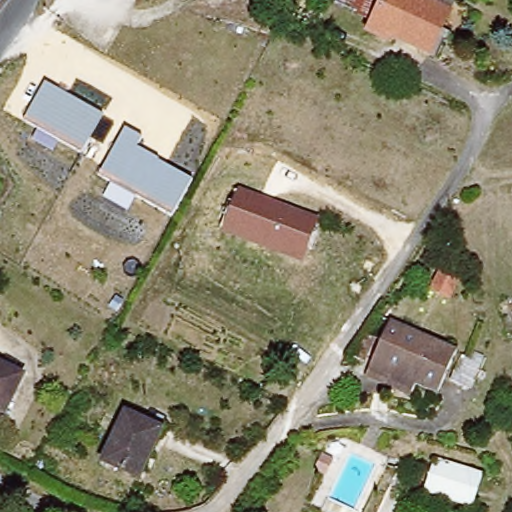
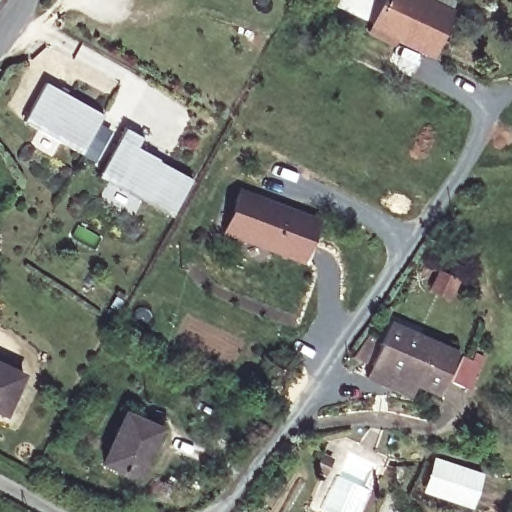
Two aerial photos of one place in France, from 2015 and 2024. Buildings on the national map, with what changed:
unchanged [(340,5),(342,0),(388,0),(377,23),(340,5)]
unchanged [(399,37),(395,43),(373,32),(377,23),(388,0),(462,0),(435,55),(399,37)]
unchanged [(45,84),(103,117),(81,155),(24,123),(45,84)]
unchanged [(125,131),(143,140),(138,150),(193,179),(173,217),(100,176),(125,131)]
unchanged [(238,188),(319,219),(304,264),(220,234),(238,188)]
unchanged [(391,322),(457,352),(438,396),(416,387),(411,397),(367,379),(372,367),(391,322)]
unchanged [(25,377),(6,417),(0,414),(0,365),(25,377)]
unchanged [(163,431),(140,481),(104,464),(127,413),(163,431)]
unchanged [(477,503),(431,487),(441,456),(487,472),(477,503)]

